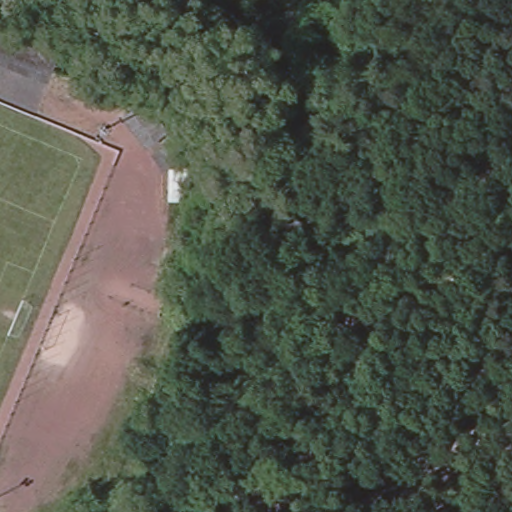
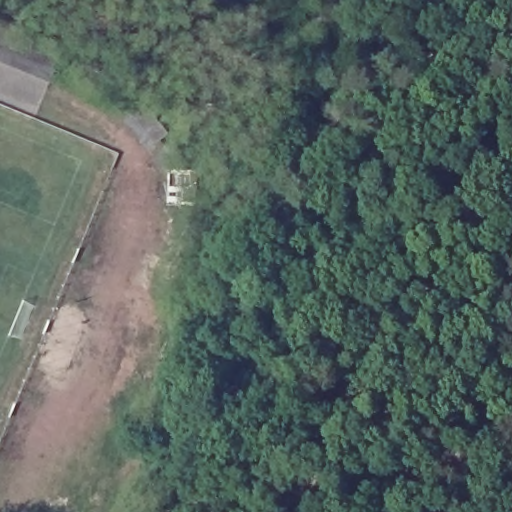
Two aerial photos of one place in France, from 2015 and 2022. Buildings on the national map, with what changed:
unchanged [(48,80),(0,60),(0,13),(62,37),(48,80)]

